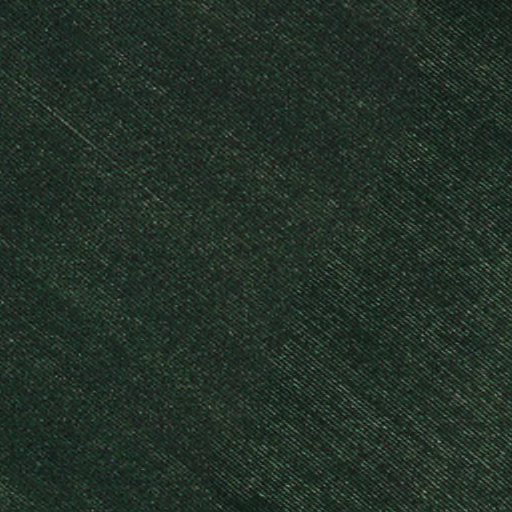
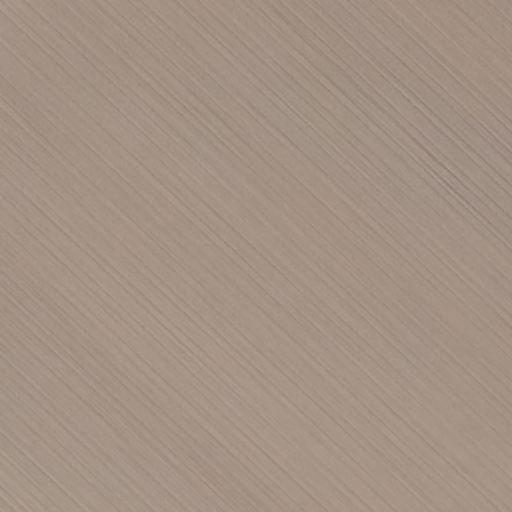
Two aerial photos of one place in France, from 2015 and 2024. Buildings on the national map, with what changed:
[]

